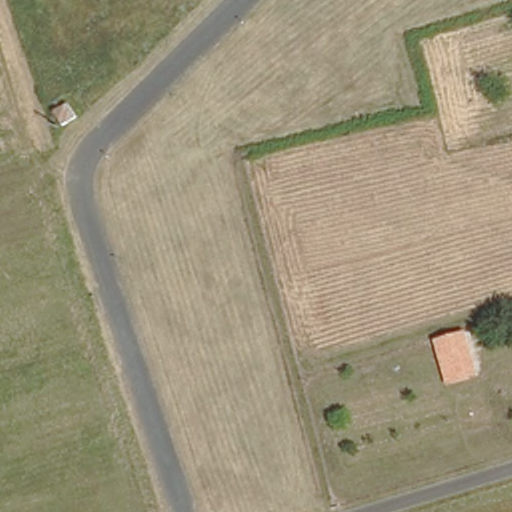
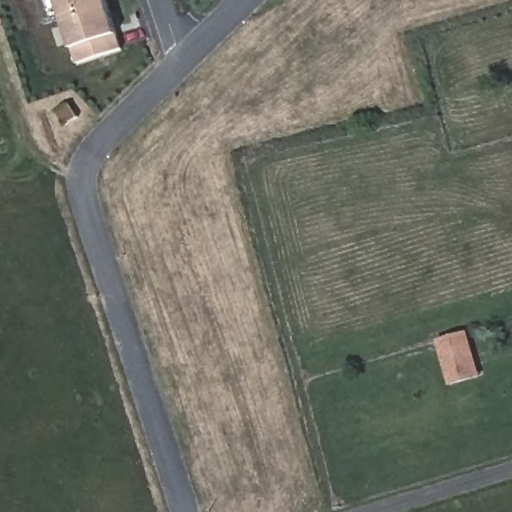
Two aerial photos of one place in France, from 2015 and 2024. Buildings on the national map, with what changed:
new [(117,34),(121,50),(77,64),(72,49),(57,0),(107,0),(117,34)]
unchanged [(79,118),(65,126),(57,113),(70,105),(79,118)]
unchanged [(472,380),(450,386),(438,341),(468,333),(477,370),(480,378),(472,380)]

